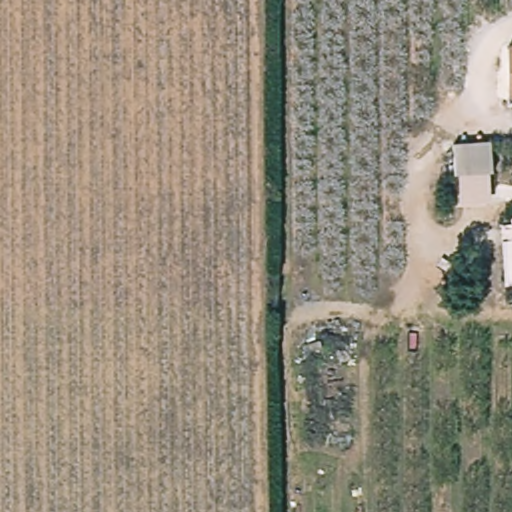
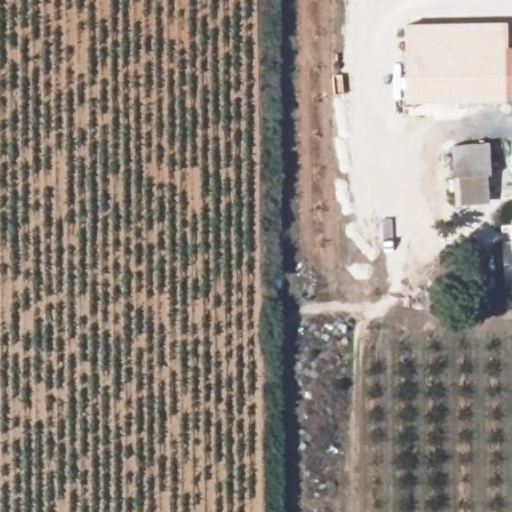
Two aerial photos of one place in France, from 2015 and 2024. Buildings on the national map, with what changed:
new [(507,45),(506,45),(507,100),(407,102),(405,23),(508,21),(507,45)]
unchanged [(507,100),(506,45),(512,45),(512,99),(507,100)]
unchanged [(490,173),(487,173),(490,203),(459,205),(455,176),(452,145),(490,142),(490,173)]

